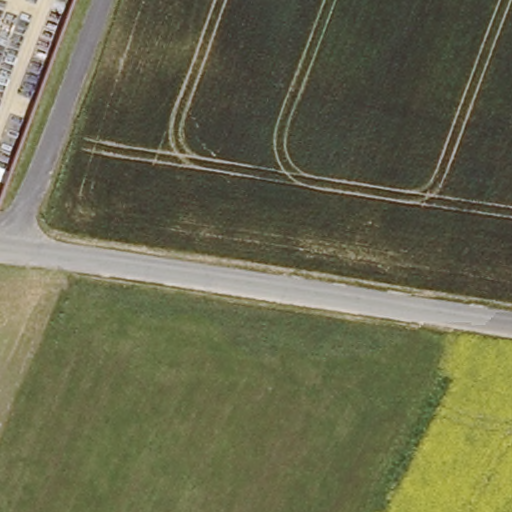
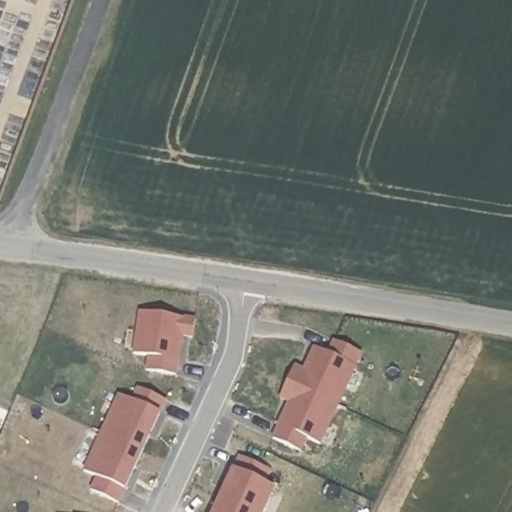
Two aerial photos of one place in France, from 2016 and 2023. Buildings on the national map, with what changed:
new [(141,311),(197,318),(196,335),(191,335),(185,377),(143,370),(136,355),(141,311)]
new [(274,438),(292,402),(281,398),(295,366),(306,370),(317,344),(329,356),(338,337),(363,355),(322,443),(308,437),(303,451),(274,438)]
new [(93,490),(98,477),(86,472),(123,395),(135,400),(141,387),(168,400),(121,502),(93,490)]
new [(239,456),(271,471),(266,483),(275,487),(264,512),(215,512),(239,456)]

